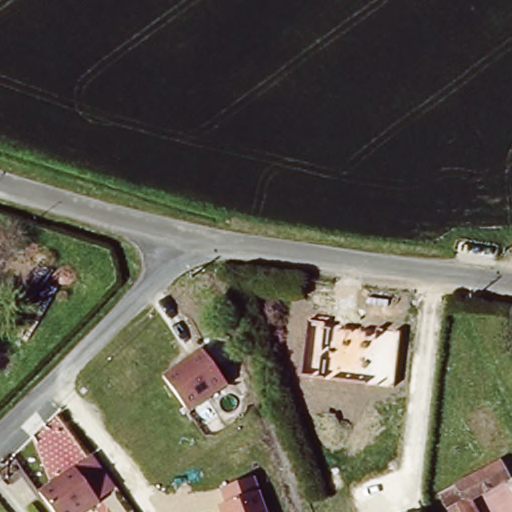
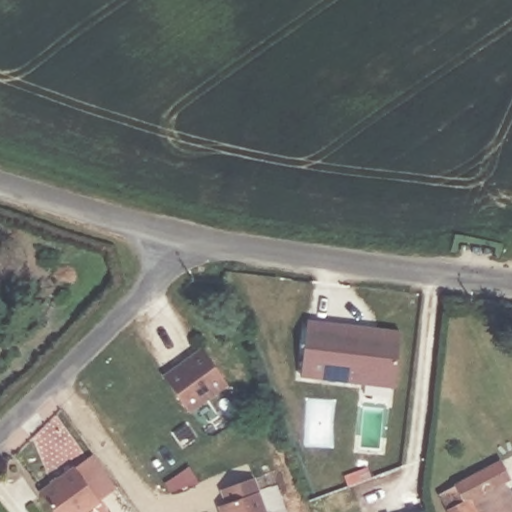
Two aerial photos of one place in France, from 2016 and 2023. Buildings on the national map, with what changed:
new [(301,376),(309,319),(402,330),(395,388),(301,376)]
unchanged [(230,384),(189,413),(163,375),(200,347),(230,384)]
unchanged [(115,483),(79,512),(55,512),(37,488),(91,452),(115,483)]
unchanged [(442,497),(503,464),(511,479),(467,501),(472,512),(450,512),(449,511),(442,497)]
unchanged [(266,512),(219,512),(216,505),(224,503),(219,486),(256,477),(259,491),(266,512)]

